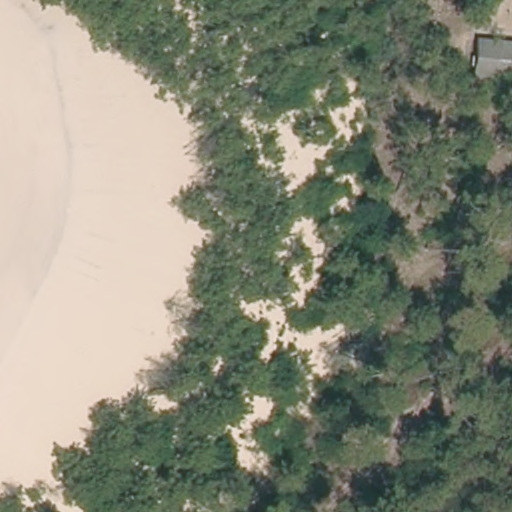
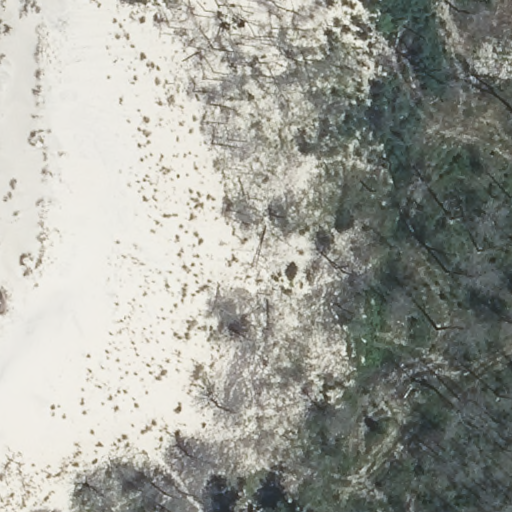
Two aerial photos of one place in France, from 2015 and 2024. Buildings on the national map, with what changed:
demolished [(512,41),(512,83),(469,79),(473,36),(512,41)]

